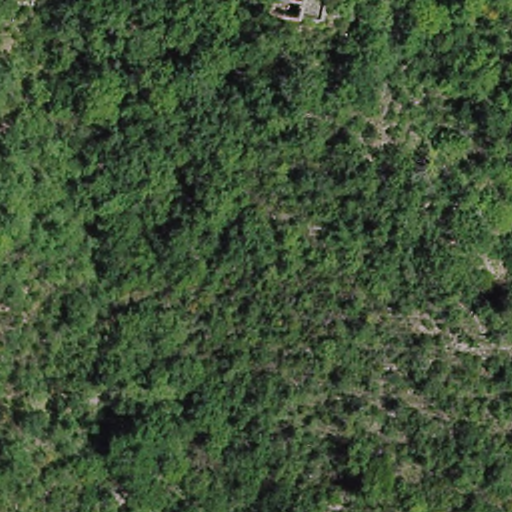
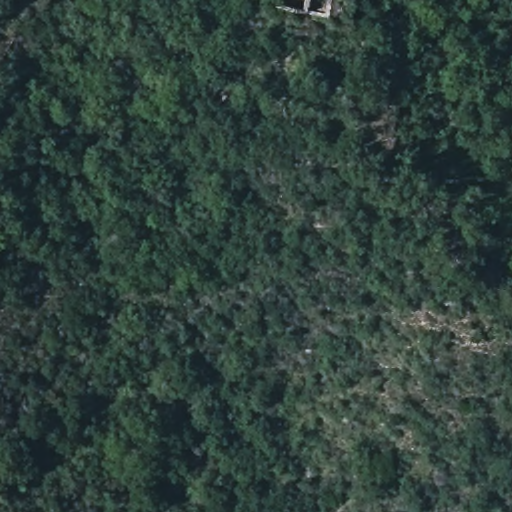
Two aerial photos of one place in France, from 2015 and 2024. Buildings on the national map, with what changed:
unchanged [(272,6),(274,0),(318,0),(315,15),(272,6)]

